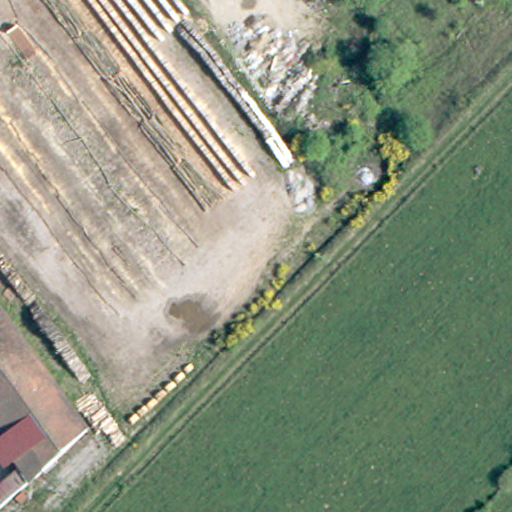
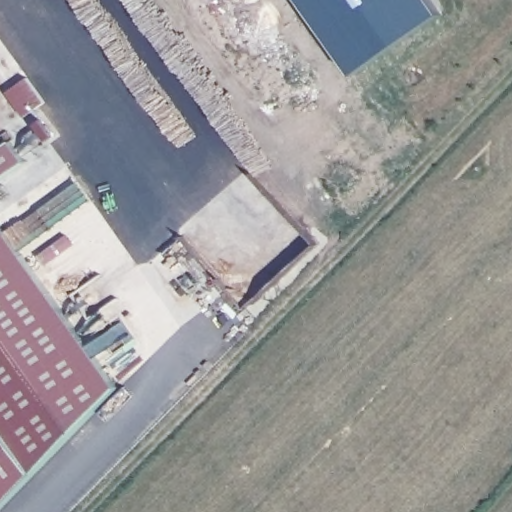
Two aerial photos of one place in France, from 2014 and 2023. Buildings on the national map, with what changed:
new [(356,71),(304,0),(432,0),(440,11),(356,71)]
new [(25,159),(0,176),(0,144),(9,137),(25,159)]
new [(84,424),(0,307),(0,220),(119,385),(84,424)]
unchanged [(0,436),(0,307),(84,424),(50,460),(32,478),(0,436)]
unchanged [(0,436),(32,478),(0,507),(0,436)]

